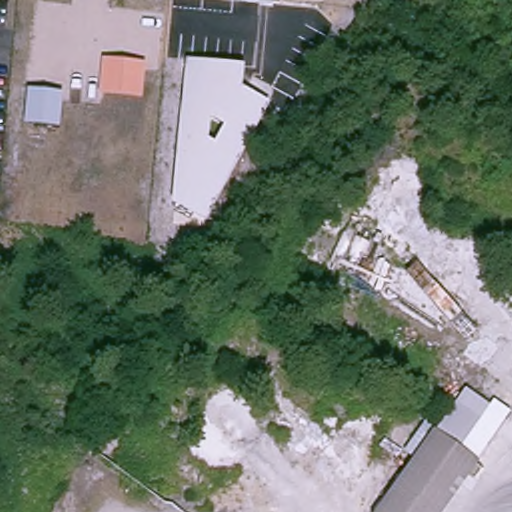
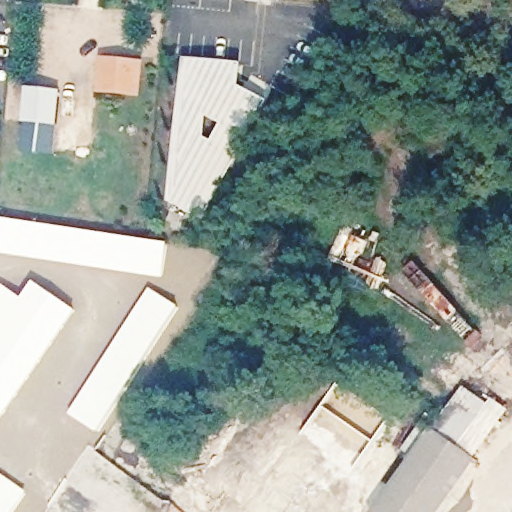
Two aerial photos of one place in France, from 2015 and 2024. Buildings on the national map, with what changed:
unchanged [(102,59),(145,63),(142,95),(100,92),(102,59)]
unchanged [(208,221),(194,212),(189,222),(173,212),(176,206),(171,201),(186,60),(245,65),(242,87),(271,104),(208,221)]
unchanged [(28,86),(63,92),(59,125),(25,125),(28,86)]
new [(169,244),(163,278),(0,254),(0,219),(169,244)]
new [(34,283),(76,310),(0,425),(0,290),(2,286),(23,300),(34,283)]
new [(150,290),(179,307),(99,432),(70,414),(150,290)]
unchanged [(434,431),(466,388),(489,404),(494,397),(510,409),(474,458),(434,431)]
unchanged [(474,458),(438,512),(369,512),(428,427),(474,458)]
new [(28,493),(14,512),(0,512),(0,474),(28,493)]

